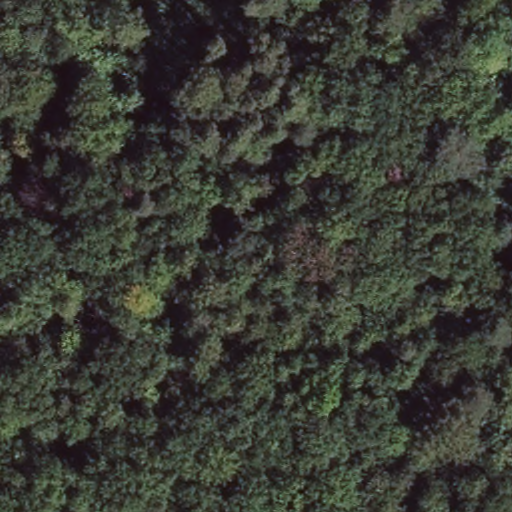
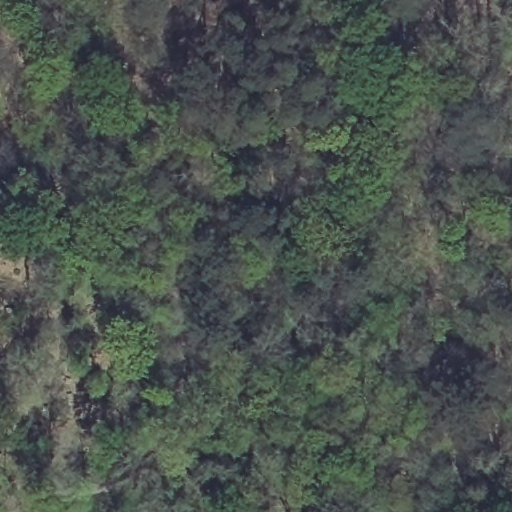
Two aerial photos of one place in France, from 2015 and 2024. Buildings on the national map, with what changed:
[]

